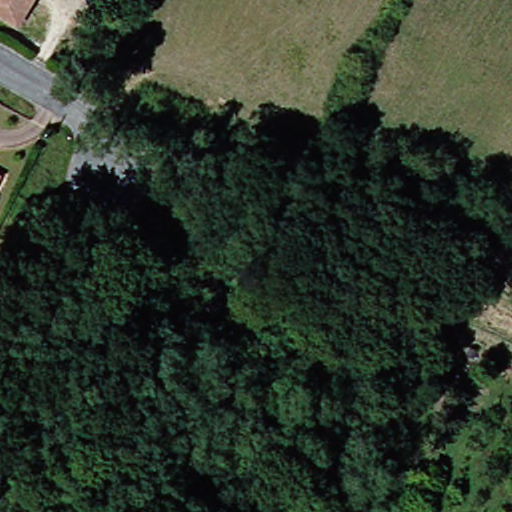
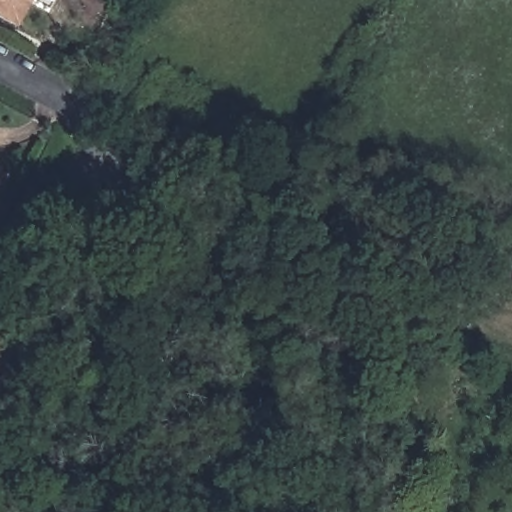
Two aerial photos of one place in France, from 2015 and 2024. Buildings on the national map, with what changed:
unchanged [(20,22),(0,10),(0,0),(34,0),(20,22)]
unchanged [(0,176),(0,173),(1,173),(0,176)]

